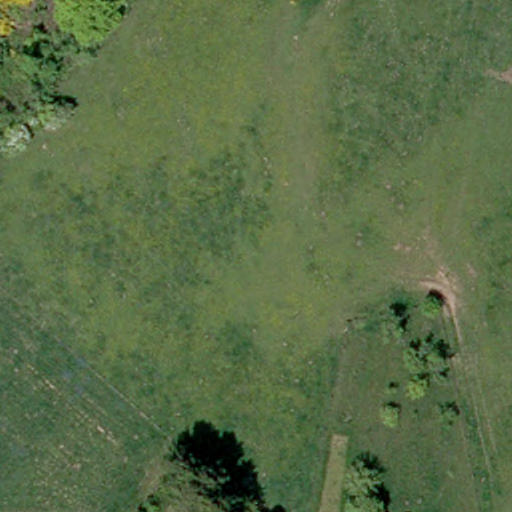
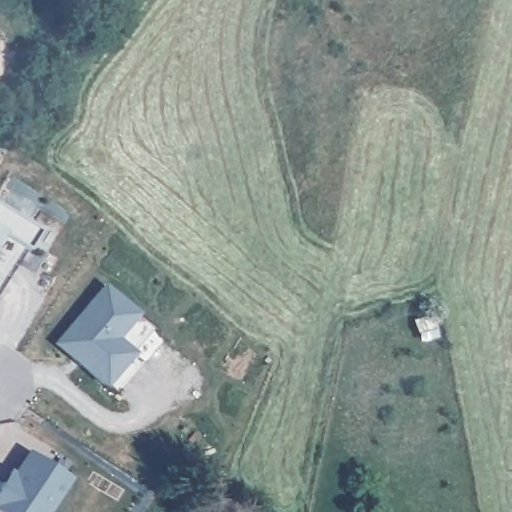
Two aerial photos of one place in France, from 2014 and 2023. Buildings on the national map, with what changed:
new [(26,252),(0,235),(0,236),(0,206),(39,232),(26,252)]
new [(0,290),(0,236),(0,235),(24,251),(0,290)]
new [(134,315),(113,340),(131,355),(104,387),(54,344),(102,288),(134,315)]
new [(28,453),(66,479),(45,512),(0,512),(0,487),(3,484),(9,474),(9,473),(13,476),(28,453)]

